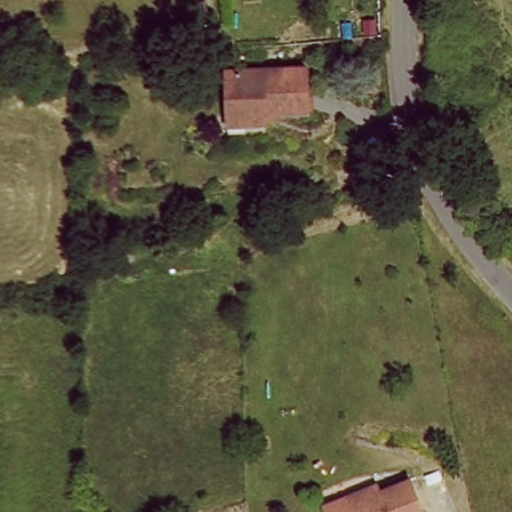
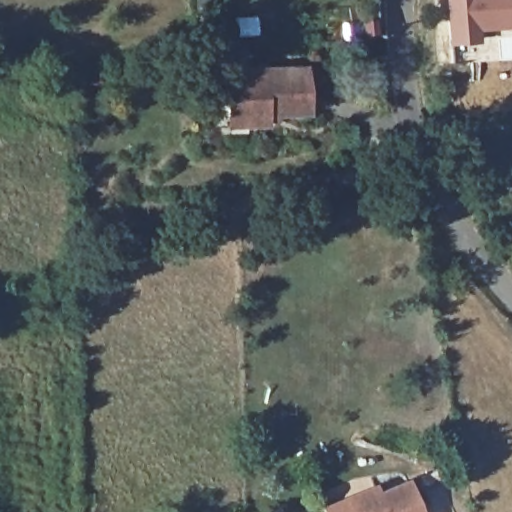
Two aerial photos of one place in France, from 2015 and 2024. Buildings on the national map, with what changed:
new [(445,0),(512,0),(512,29),(479,31),(479,42),(449,44),(445,0)]
unchanged [(228,127),(227,114),(224,72),(304,68),(306,110),(266,112),(266,125),(246,126),(244,128),(228,127)]
unchanged [(412,477),(426,512),(329,512),(326,503),(349,494),(362,488),(379,482),(381,489),(412,477)]

